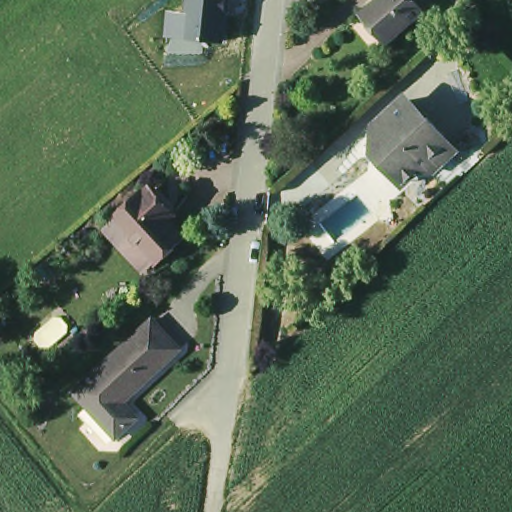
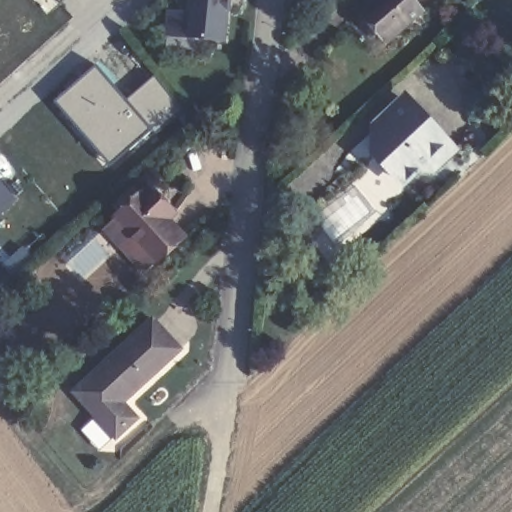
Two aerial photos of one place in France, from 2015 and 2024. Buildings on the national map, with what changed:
new [(40,18),(27,0),(62,0),(40,18)]
unchanged [(167,37),(169,10),(185,11),(187,0),(229,0),(226,44),(167,37)]
unchanged [(425,17),(392,47),(369,19),(390,0),(411,0),(425,17)]
new [(95,67),(125,100),(152,132),(108,165),(55,101),(95,67)]
new [(153,75),(180,109),(152,132),(125,100),(153,75)]
unchanged [(434,166),(413,163),(395,175),(372,150),(372,141),(373,126),(388,112),(407,95),(425,114),(427,112),(448,134),(457,144),(434,166)]
new [(19,202),(0,218),(0,180),(19,202)]
unchanged [(160,259),(147,271),(130,252),(105,226),(117,214),(144,188),(147,190),(152,185),(175,211),(171,215),(188,232),(160,259)]
unchanged [(182,352),(129,406),(144,422),(122,445),(78,401),(154,324),(182,352)]

